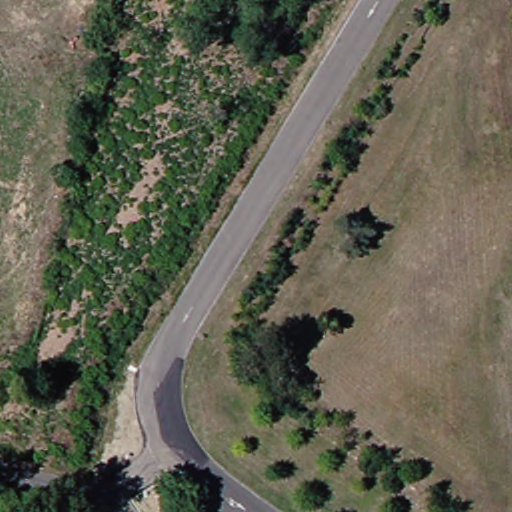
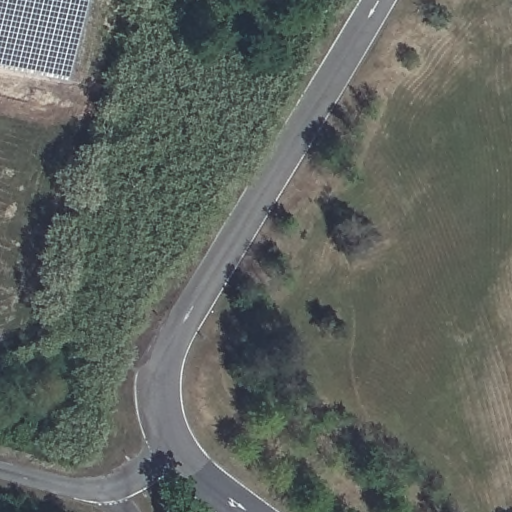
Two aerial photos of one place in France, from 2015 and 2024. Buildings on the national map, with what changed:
new [(0,67),(0,0),(83,0),(67,80),(0,67)]

